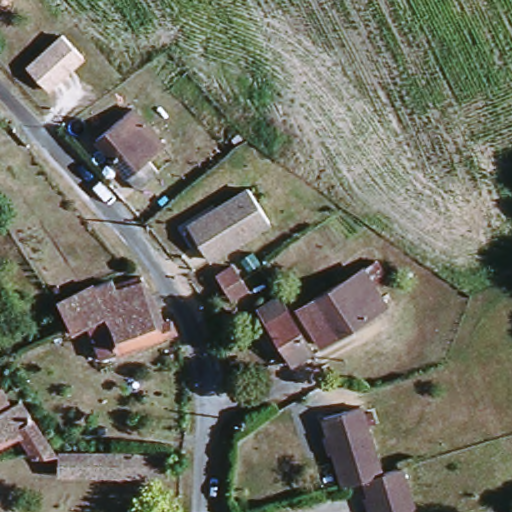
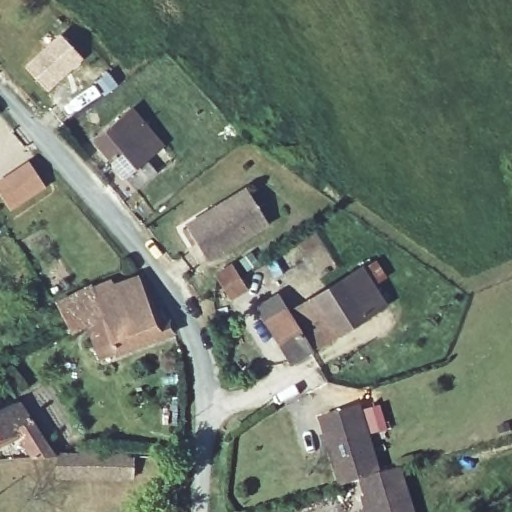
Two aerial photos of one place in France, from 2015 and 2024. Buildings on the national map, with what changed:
unchanged [(80,54),(44,88),(24,65),(59,33),(80,54)]
unchanged [(95,142),(132,109),(164,144),(145,160),(155,171),(160,175),(139,193),(135,188),(95,142)]
new [(20,164),(36,185),(6,208),(0,200),(0,179),(20,164)]
unchanged [(247,184),(273,223),(212,264),(186,223),(247,184)]
unchanged [(230,297),(225,289),(219,277),(237,266),(249,287),(230,297)]
unchanged [(301,313),(367,272),(389,307),(323,348),(301,313)]
unchanged [(70,337),(67,329),(55,309),(91,289),(94,294),(112,286),(115,292),(135,282),(160,330),(167,327),(174,340),(117,359),(115,353),(102,358),(86,329),(70,337)]
unchanged [(261,308),(278,298),(314,354),(295,364),(261,308)]
unchanged [(381,367),(386,376),(366,386),(361,377),(381,367)]
unchanged [(10,394),(20,389),(26,399),(24,401),(0,411),(0,372),(10,394)]
unchanged [(24,401),(60,457),(35,458),(22,437),(0,445),(0,411),(24,401)]
unchanged [(363,408),(385,477),(365,483),(355,486),(346,489),(325,419),(335,417),(363,408)]
unchanged [(170,481),(121,479),(65,475),(66,456),(122,459),(171,461),(170,481)]
unchanged [(415,512),(373,512),(365,483),(385,477),(403,472),(415,512)]

